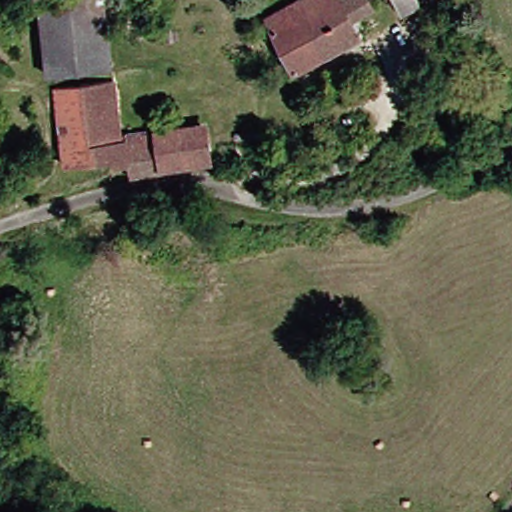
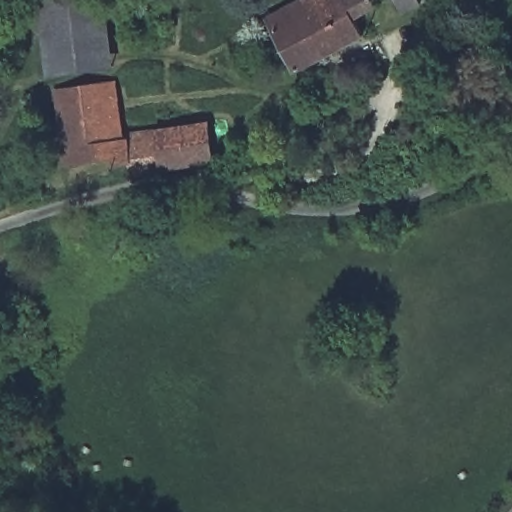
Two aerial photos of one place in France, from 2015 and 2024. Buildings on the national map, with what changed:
unchanged [(330,0),(342,23),(350,39),(286,70),(260,19),(296,0),(330,0)]
unchanged [(358,0),(363,10),(342,23),(330,0),(358,0)]
unchanged [(399,17),(390,0),(415,0),(418,6),(399,17)]
unchanged [(107,76),(44,84),(34,10),(97,4),(107,76)]
unchanged [(59,164),(50,89),(111,80),(119,133),(124,165),(107,166),(106,158),(83,161),(59,164)]
unchanged [(150,129),(198,122),(199,121),(204,163),(155,172),(155,169),(150,129)]
unchanged [(150,129),(155,169),(155,172),(125,176),(124,165),(119,133),(150,129)]

